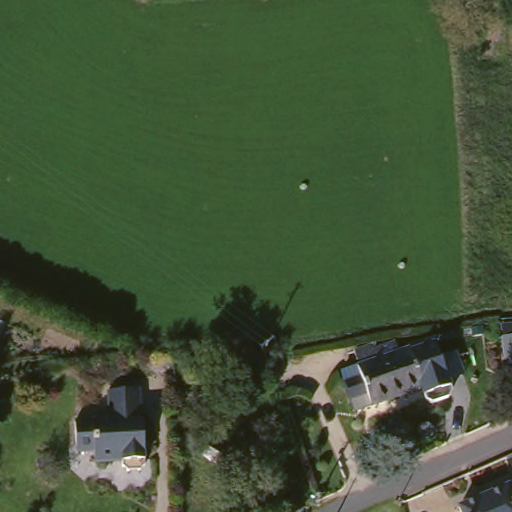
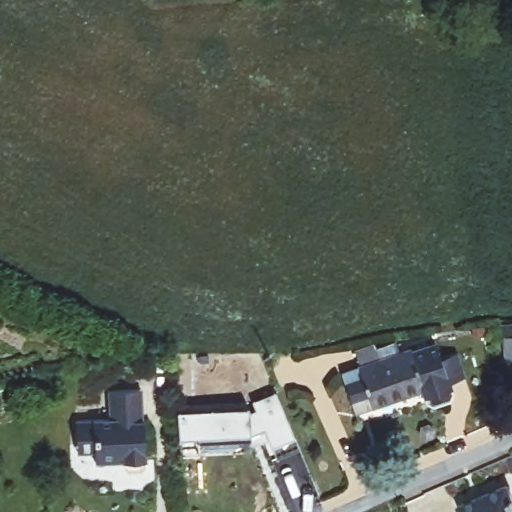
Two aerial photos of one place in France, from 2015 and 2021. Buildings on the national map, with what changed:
unchanged [(340,369),(356,363),(351,347),(371,341),(377,357),(408,347),(421,387),(370,405),(353,411),(340,369)]
unchanged [(76,448),(74,425),(108,421),(105,388),(137,385),(140,416),(141,416),(146,461),(141,466),(130,467),(124,463),(124,461),(111,462),(109,465),(96,466),(95,455),(77,456),(76,448)]
new [(247,405),(248,410),(255,407),(252,400),(275,390),(299,448),(276,457),(264,427),(250,433),(250,438),(199,442),(198,436),(179,438),(176,411),(196,410),(247,405)]
unchanged [(512,508),(512,512),(459,512),(458,510),(505,491),(512,508)]

